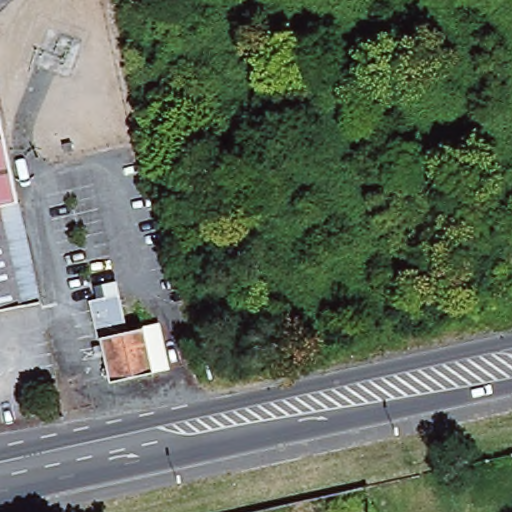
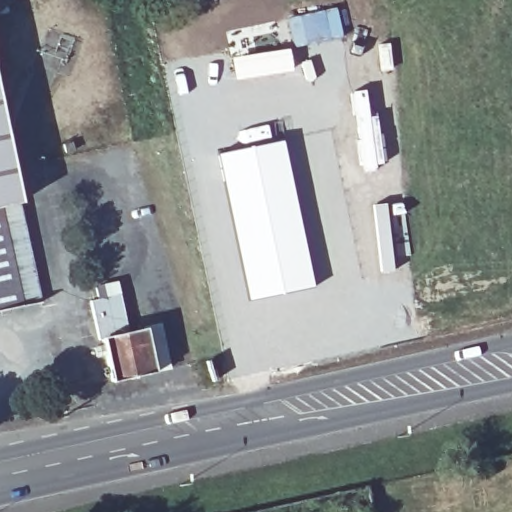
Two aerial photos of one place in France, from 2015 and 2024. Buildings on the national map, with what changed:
new [(288,47),(292,70),(234,80),(230,56),(288,47)]
unchanged [(0,163),(0,80),(17,160),(0,163)]
new [(365,88),(368,115),(375,114),(385,165),(362,171),(348,91),(365,88)]
new [(282,139),(313,287),(246,301),(215,153),(282,139)]
unchanged [(0,294),(0,185),(22,289),(0,294)]
unchanged [(105,382),(95,340),(156,326),(165,367),(105,382)]

